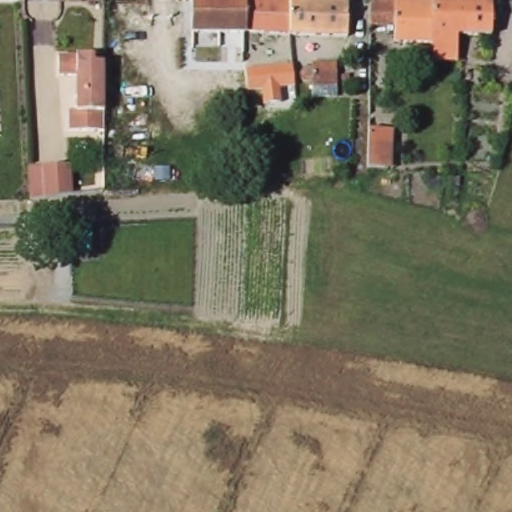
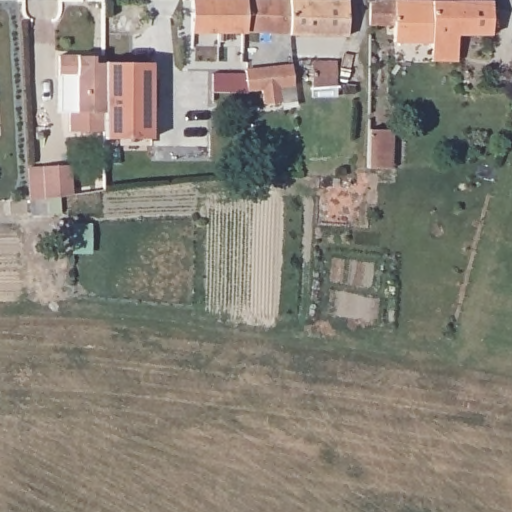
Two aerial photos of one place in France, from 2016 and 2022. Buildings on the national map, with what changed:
unchanged [(349,35),(246,32),(191,32),(192,27),(192,0),(348,0),(349,35)]
unchanged [(491,34),(457,33),(456,41),(394,40),(393,22),(371,23),(370,0),(492,0),(491,34)]
unchanged [(94,53),(95,61),(105,61),(105,130),(70,132),(69,110),(76,109),(76,74),(59,73),(59,54),(94,53)]
unchanged [(301,69),(303,66),(307,64),(311,64),(312,59),(337,58),(338,97),(313,97),(312,79),(307,79),(303,77),(301,75),(301,73),(301,69)]
new [(152,62),(151,137),(105,137),(105,130),(105,61),(152,62)]
unchanged [(247,64),(295,69),(294,84),(279,82),(277,94),(265,92),(267,82),(245,79),(247,64)]
unchanged [(397,131),(394,169),(366,166),(370,130),(397,131)]
unchanged [(71,169),(74,195),(45,199),(30,202),(28,170),(42,170),(71,169)]

